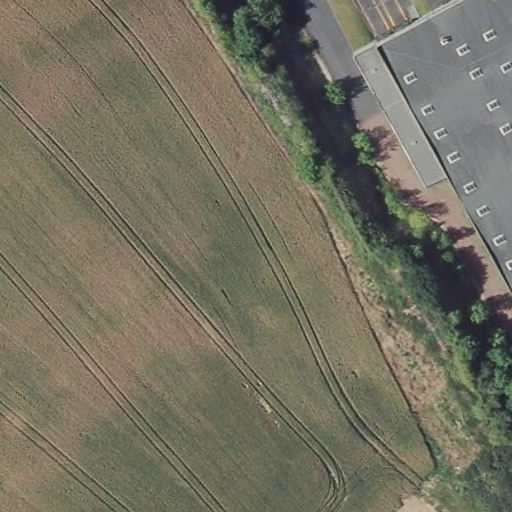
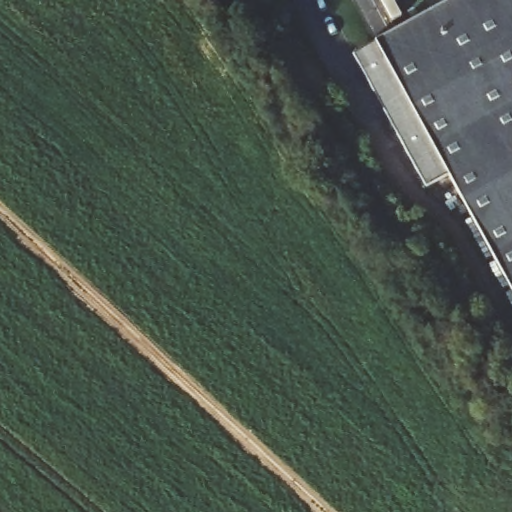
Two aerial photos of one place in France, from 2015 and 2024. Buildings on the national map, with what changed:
unchanged [(420,189),(351,58),(457,0),(512,0),(512,303),(443,177),(420,189)]

